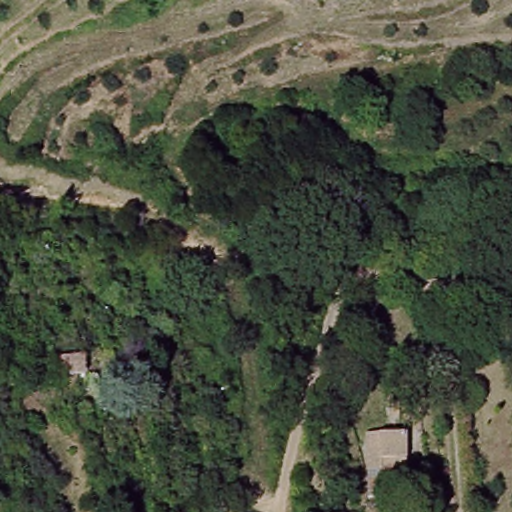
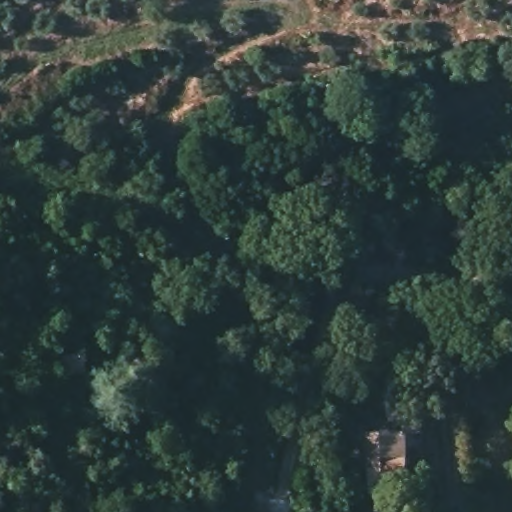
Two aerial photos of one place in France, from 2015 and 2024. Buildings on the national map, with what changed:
unchanged [(78,353),(84,373),(61,377),(56,356),(78,353)]
unchanged [(403,430),(403,487),(379,487),(379,495),(365,494),(363,431),(403,430)]

